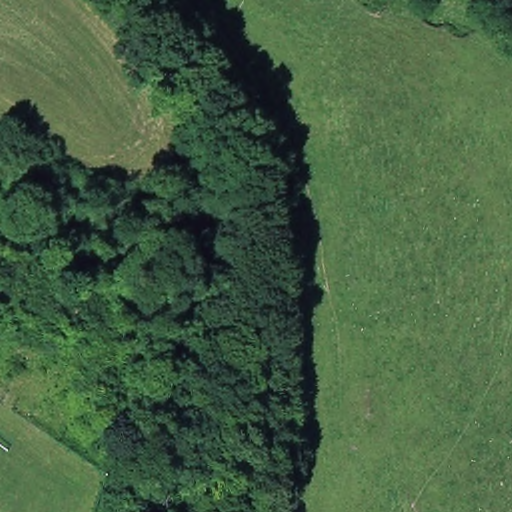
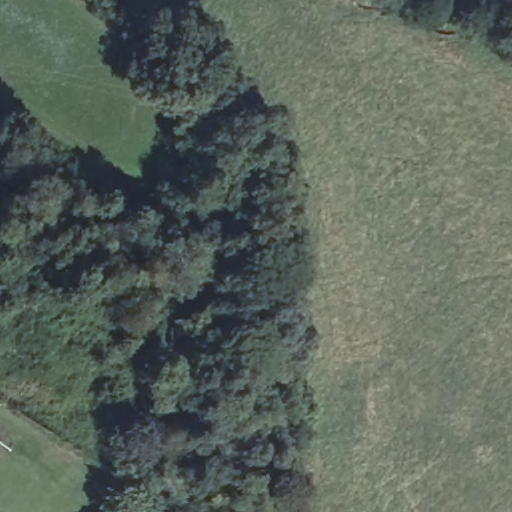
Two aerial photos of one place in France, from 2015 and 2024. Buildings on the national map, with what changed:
unchanged [(253,507),(263,512),(251,512),(253,507)]

